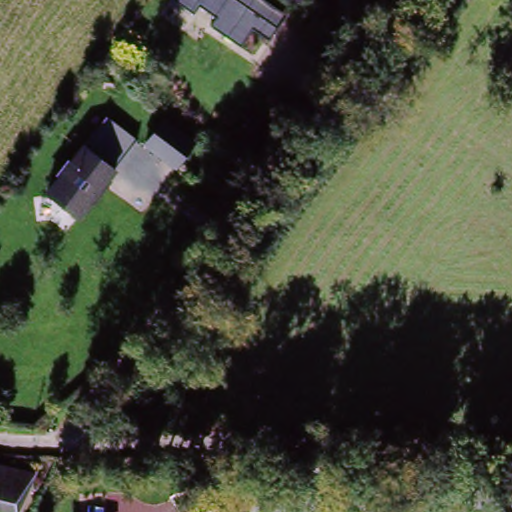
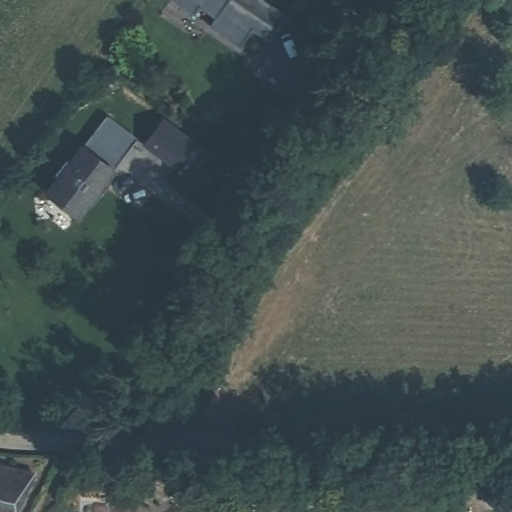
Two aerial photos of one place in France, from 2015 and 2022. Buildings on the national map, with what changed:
unchanged [(269,40),(251,27),(241,45),(211,24),(216,16),(201,5),(194,14),(175,0),(266,0),(286,13),(269,40)]
unchanged [(143,142),(163,116),(195,141),(176,167),(143,142)]
unchanged [(139,144),(105,188),(109,192),(95,210),(91,207),(80,221),(49,197),(61,182),(57,179),(69,163),(73,166),(108,120),(139,144)]
unchanged [(17,512),(11,512),(0,509),(0,465),(35,474),(17,512)]

